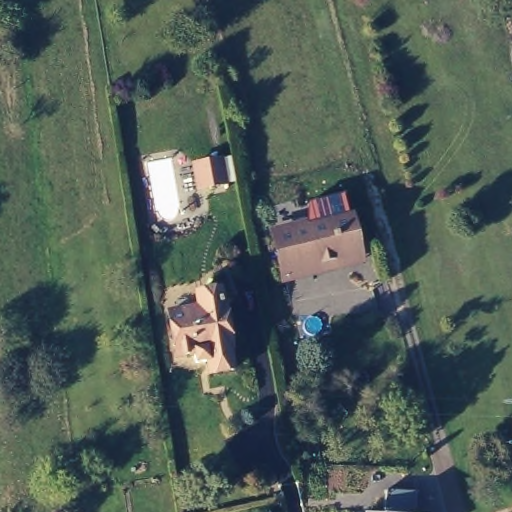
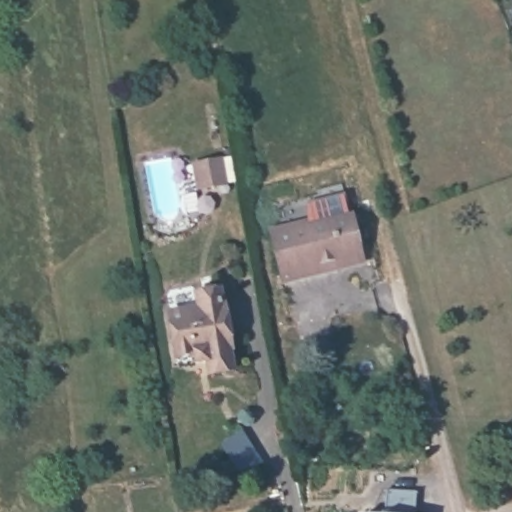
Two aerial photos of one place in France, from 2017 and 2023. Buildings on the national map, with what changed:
unchanged [(222,159),(223,166),(226,184),(198,189),(194,164),(204,163),(222,159)]
unchanged [(307,272),(290,276),(279,229),(354,210),(364,250),(365,257),(307,272)]
unchanged [(173,308),(203,303),(200,288),(225,284),(227,299),(229,299),(237,344),(235,344),(238,365),(214,369),(212,357),(200,359),(199,349),(180,353),(179,342),(173,308)]
unchanged [(365,505),(426,508),(426,512),(365,512),(365,505)]

